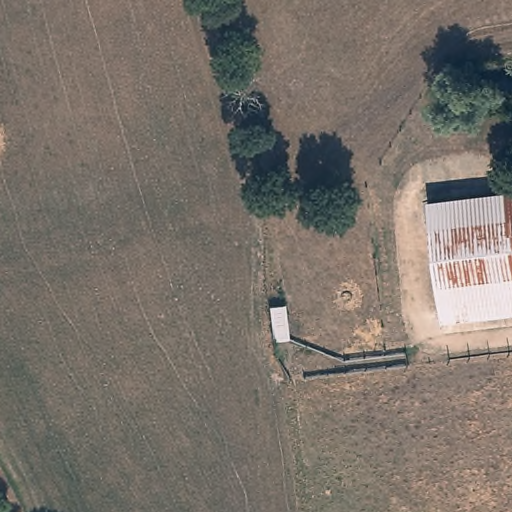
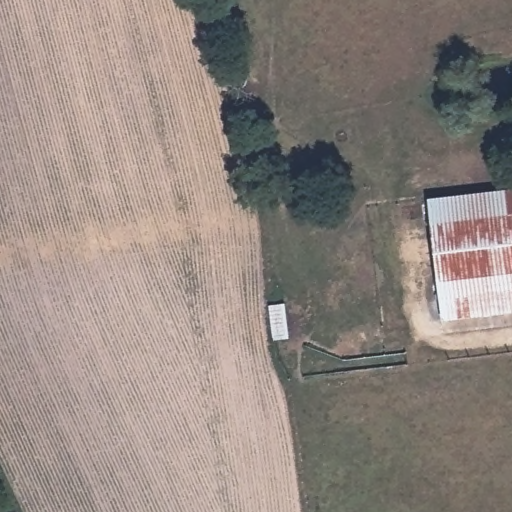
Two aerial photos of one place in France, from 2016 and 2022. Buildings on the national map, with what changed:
unchanged [(512,191),(512,211),(510,192),(512,191)]
unchanged [(510,192),(512,211),(512,272),(438,281),(436,261),(430,202),(510,192)]
unchanged [(512,313),(444,322),(438,281),(512,272),(512,313)]

